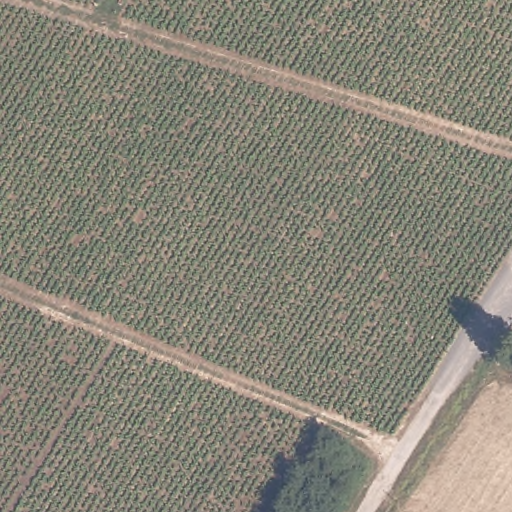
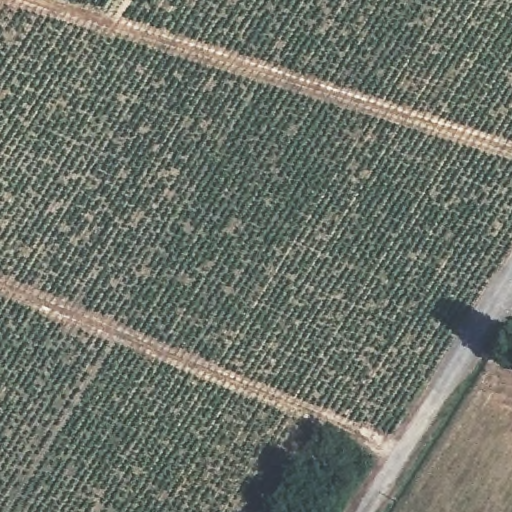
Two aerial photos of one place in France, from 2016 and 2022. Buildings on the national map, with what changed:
[]

